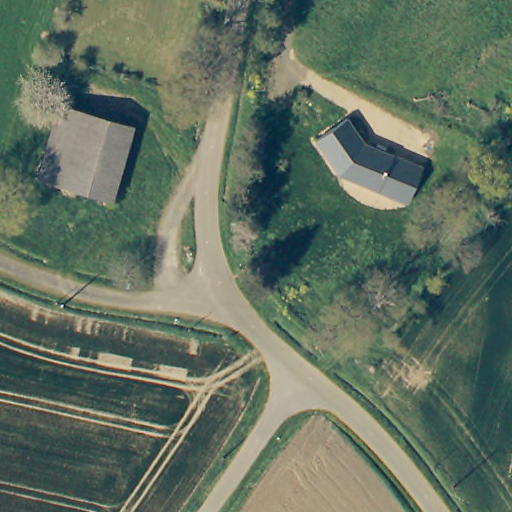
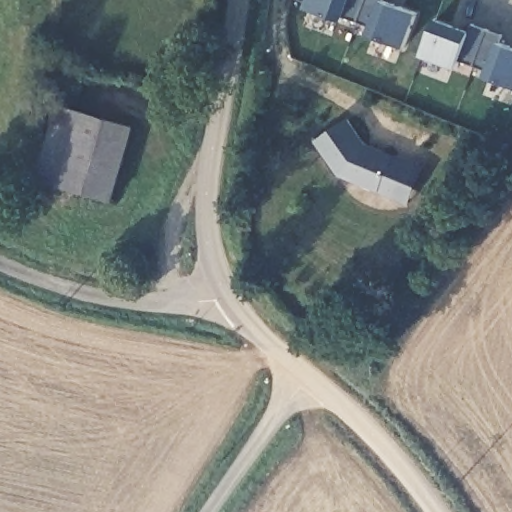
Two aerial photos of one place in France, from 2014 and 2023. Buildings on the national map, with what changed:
new [(358,23),(344,18),(342,22),(307,10),(309,4),(297,0),(366,0),(358,23)]
new [(366,0),(384,0),(384,2),(417,14),(404,49),(369,36),(372,29),(358,23),(366,0)]
new [(435,21),(469,33),(472,24),(488,30),(474,66),(460,61),(458,68),(422,56),(435,21)]
new [(488,30),(503,36),(500,43),(512,48),(512,86),(487,76),(489,72),(474,66),(488,30)]
unchanged [(136,131),(116,204),(43,184),(64,109),(136,131)]
unchanged [(410,203),(395,197),(341,174),(318,139),(349,118),(367,143),(410,161),(425,167),(410,203)]

